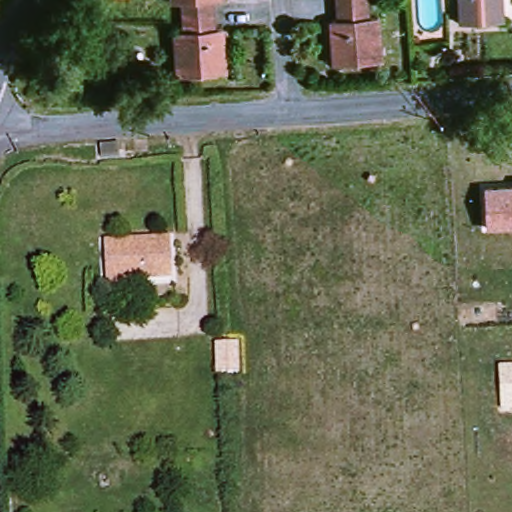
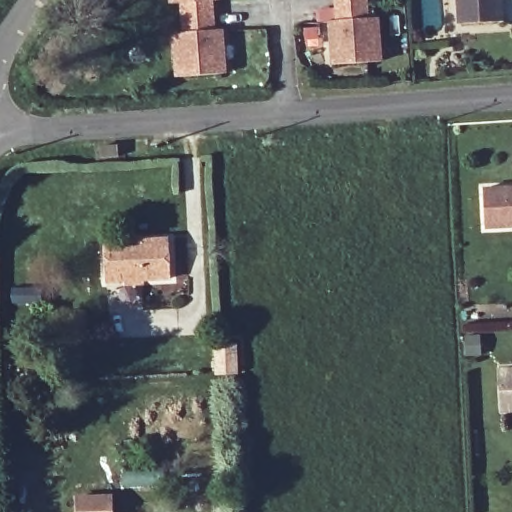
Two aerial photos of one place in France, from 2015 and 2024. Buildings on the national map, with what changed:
unchanged [(188,36),(187,4),(177,5),(177,0),(224,0),(225,2),(216,3),(217,34),(226,35),(228,76),(180,78),(178,37),(188,36)]
unchanged [(371,19),(381,21),(382,62),(337,65),(335,21),(342,19),(341,0),(370,0),(371,19)]
unchanged [(505,26),(462,27),(462,0),(504,0),(505,26)]
unchanged [(115,148),(115,160),(95,160),(93,150),(115,148)]
unchanged [(512,228),(483,230),(482,188),(512,188),(512,228)]
unchanged [(171,279),(106,284),(103,244),(168,240),(171,279)]
unchanged [(240,375),(219,376),(218,346),(237,347),(240,375)]
unchanged [(512,410),(500,411),(498,373),(512,372),(512,410)]
new [(114,512),(75,512),(74,495),(113,494),(114,512)]

